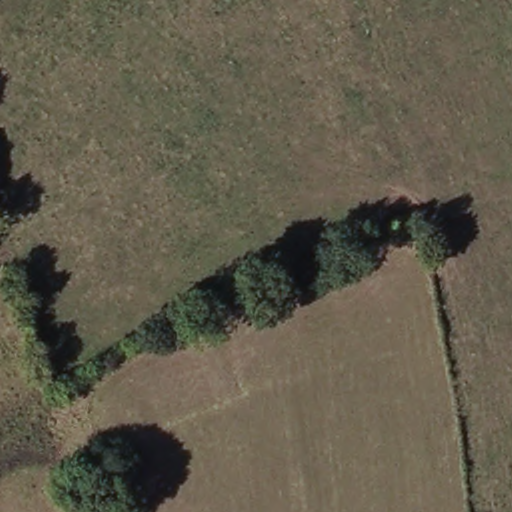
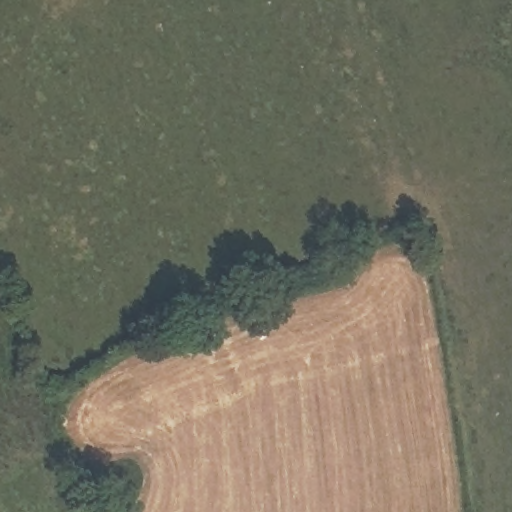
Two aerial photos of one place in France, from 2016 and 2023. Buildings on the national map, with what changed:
[]

